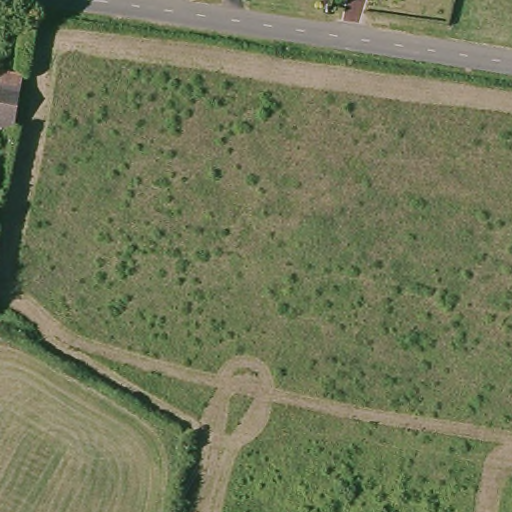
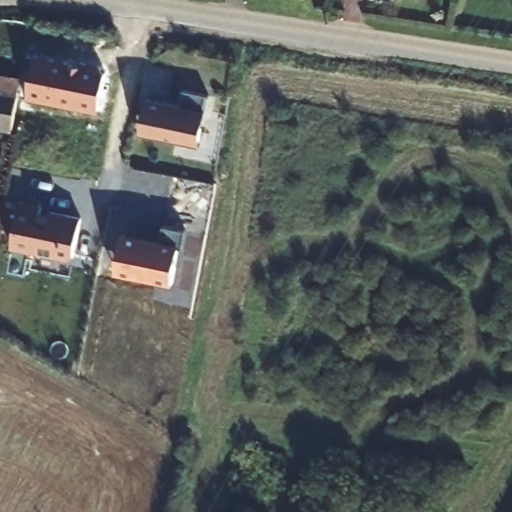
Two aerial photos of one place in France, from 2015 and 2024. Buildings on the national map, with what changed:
new [(436,3),(428,0),(437,0),(436,3)]
new [(28,98),(36,54),(109,67),(100,111),(28,98)]
unchanged [(10,129),(0,127),(0,70),(22,74),(10,129)]
new [(140,121),(144,100),(180,106),(182,91),(207,96),(197,147),(144,137),(137,136),(140,121)]
new [(13,247),(22,199),(43,203),(41,210),(52,212),(53,208),(83,215),(73,258),(13,247)]
new [(115,274),(123,234),(163,238),(165,226),(185,229),(174,285),(115,274)]

